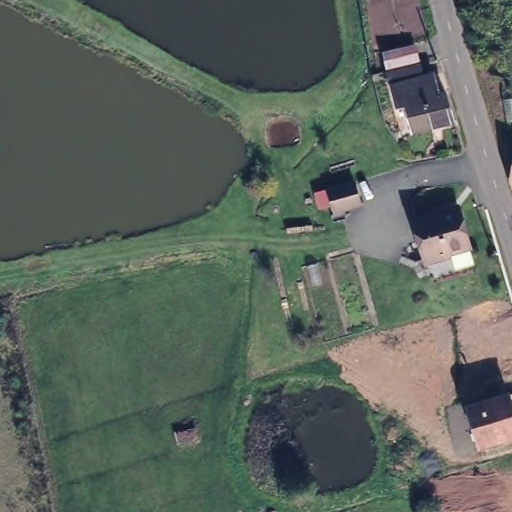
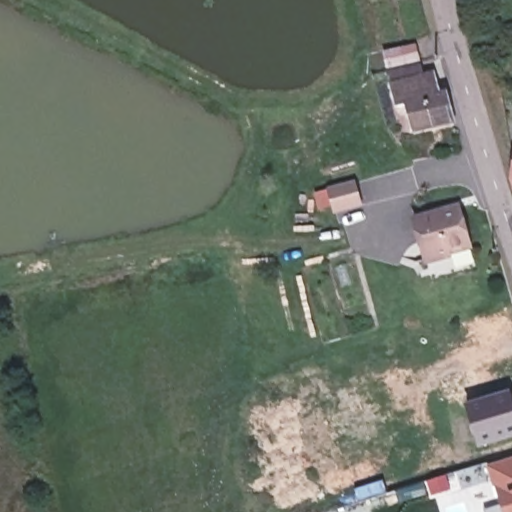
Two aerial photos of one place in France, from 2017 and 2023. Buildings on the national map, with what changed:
unchanged [(409,45),(413,61),(385,67),(382,51),(409,45)]
unchanged [(415,67),(418,79),(427,78),(432,97),(440,96),(445,123),(407,133),(401,108),(391,109),(382,74),(415,67)]
unchanged [(504,198),(512,142),(512,200),(505,199),(504,198)]
unchanged [(332,213),(330,204),(327,195),(325,188),(352,180),(354,186),(357,197),(359,205),(332,213)]
unchanged [(416,223),(440,216),(440,210),(459,204),(471,247),(427,260),(416,223)]
unchanged [(512,396),(512,433),(474,445),(462,406),(511,391),(512,396)]
unchanged [(190,419),(193,429),(173,435),(171,425),(190,419)]
new [(489,465),(512,458),(512,512),(503,512),(489,465)]

